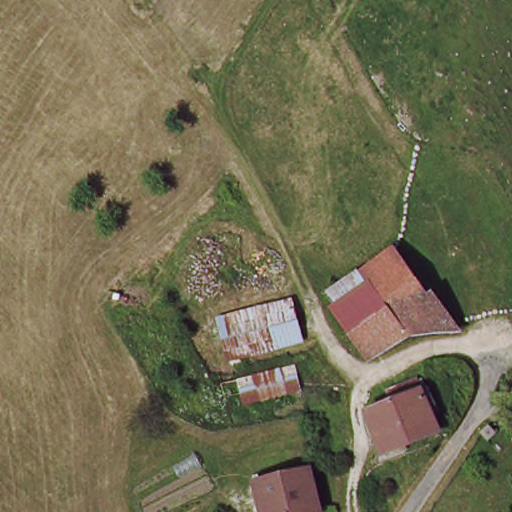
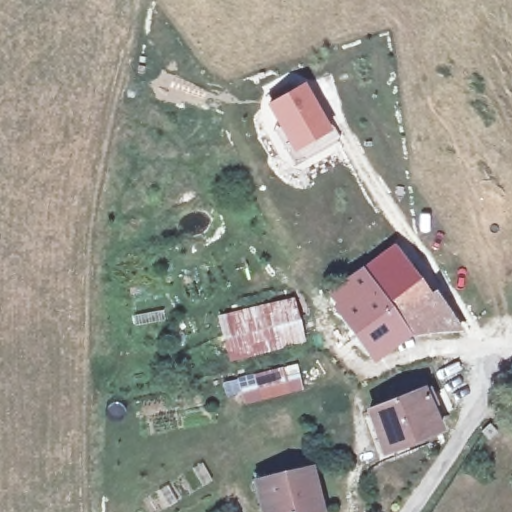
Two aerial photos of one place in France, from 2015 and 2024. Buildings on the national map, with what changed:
new [(332,130),(293,152),(265,104),(303,82),(332,130)]
unchanged [(378,360),(367,361),(325,301),(357,276),(387,254),(404,273),(423,296),(431,291),(455,326),(450,330),(401,341),(378,360)]
unchanged [(297,343),(230,356),(225,320),(290,305),(297,343)]
unchanged [(298,388),(242,401),(240,375),(295,365),(298,388)]
unchanged [(411,384),(415,390),(418,388),(421,386),(425,397),(438,434),(385,453),(367,415),(392,401),(389,395),(411,384)]
unchanged [(257,483),(308,470),(315,494),(262,507),(257,483)]
unchanged [(319,512),(263,512),(262,507),(315,494),(315,497),(319,512)]

